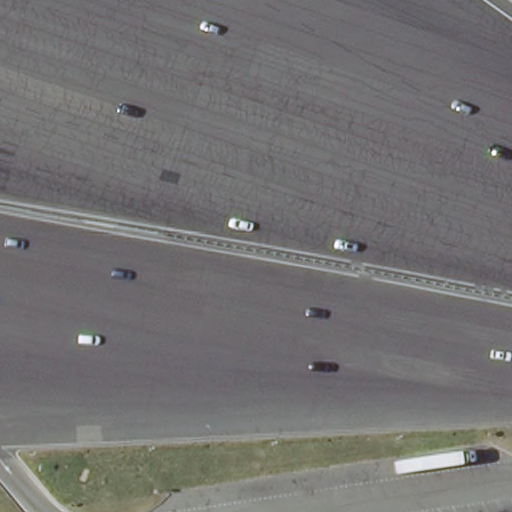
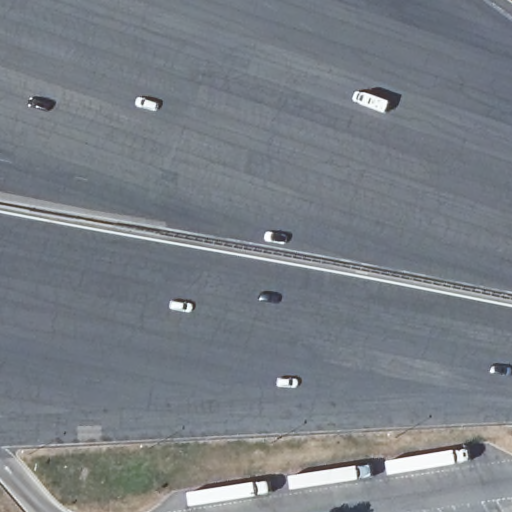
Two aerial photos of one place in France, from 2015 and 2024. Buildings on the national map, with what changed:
[]

